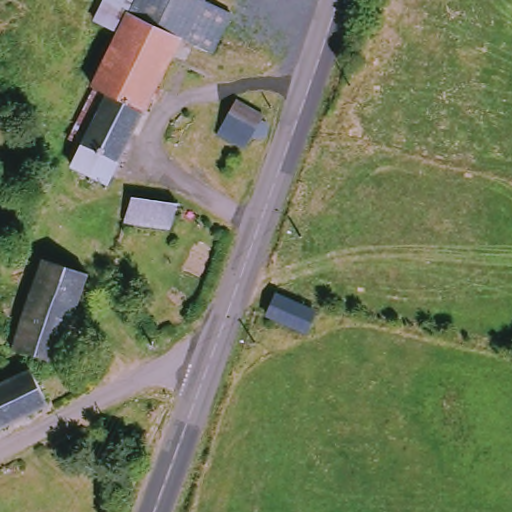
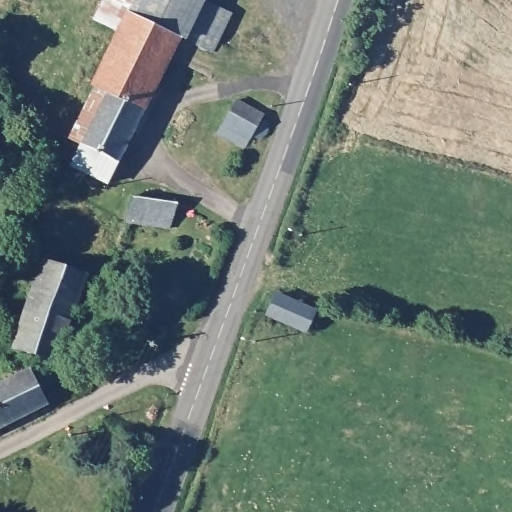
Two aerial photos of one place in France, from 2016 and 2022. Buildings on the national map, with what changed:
unchanged [(188,45),(178,64),(164,56),(150,86),(153,89),(151,94),(146,92),(138,109),(91,87),(89,86),(115,31),(92,19),(101,0),(200,0),(226,13),(207,51),(179,37),(178,40),(188,45)]
unchanged [(138,109),(103,182),(62,164),(72,144),(60,138),(91,87),(138,109)]
unchanged [(237,100),(263,114),(261,119),(264,122),(266,124),(267,127),(267,130),(266,134),(265,137),(262,138),(260,138),(257,137),(252,135),(245,148),(218,135),(237,100)]
unchanged [(130,199),(130,197),(178,202),(176,210),(169,228),(119,222),(130,199)]
unchanged [(81,273),(57,363),(13,348),(37,260),(81,273)]
unchanged [(320,310),(308,334),(267,316),(276,291),(320,310)]
unchanged [(6,365),(12,375),(26,369),(44,404),(0,425),(0,368),(6,365)]

